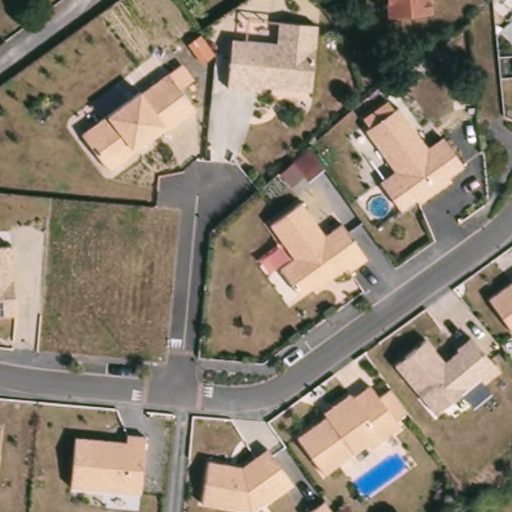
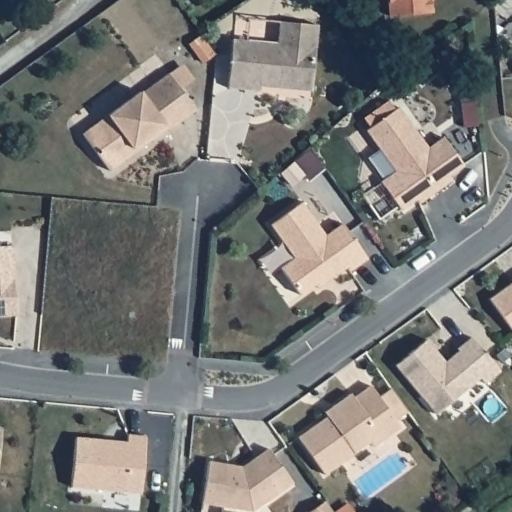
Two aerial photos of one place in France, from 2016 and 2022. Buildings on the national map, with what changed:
unchanged [(389,0),(431,0),(432,10),(390,15),(389,0)]
unchanged [(261,97),(229,95),(232,47),(242,48),(245,26),(278,27),(316,29),(313,88),(313,95),(261,92),(261,97)]
unchanged [(85,134),(144,91),(145,93),(172,74),(199,110),(171,131),(170,129),(112,170),(85,134)]
unchanged [(401,205),(381,177),(396,166),(366,125),(398,102),(428,143),(443,132),(463,160),(448,171),(451,175),(419,199),(416,195),(401,205)]
unchanged [(297,294),(278,268),(292,257),(268,224),(299,202),(323,235),(340,223),(365,258),(347,271),(345,267),(334,274),(316,287),(313,283),(297,294)]
unchanged [(0,316),(0,246),(10,245),(15,315),(0,316)]
unchanged [(512,327),(492,298),(512,284),(512,327)]
unchanged [(490,388),(485,382),(439,415),(402,364),(435,340),(451,364),(466,354),(465,352),(480,341),(505,377),(490,388)]
unchanged [(411,411),(399,420),(403,426),(375,446),(372,442),(327,475),(301,438),(330,416),(327,412),(335,407),(353,393),(356,397),(373,385),(382,397),(394,388),(401,398),(411,411)]
unchanged [(125,442),(127,432),(144,434),(140,493),(69,486),(74,437),(125,442)]
unchanged [(296,478),(256,507),(205,502),(208,460),(230,462),(245,462),(271,444),(296,478)]
unchanged [(324,500),(332,512),(305,512),(324,500)]

